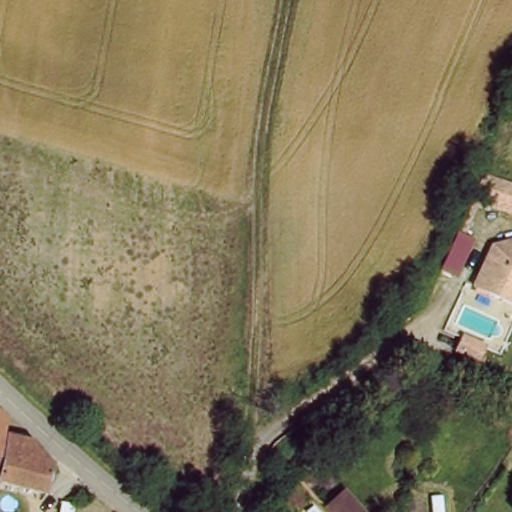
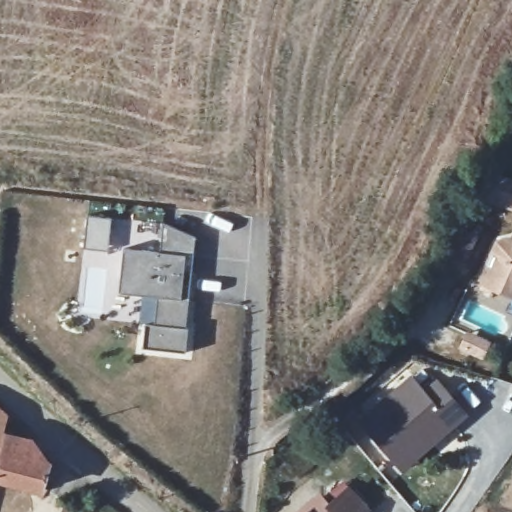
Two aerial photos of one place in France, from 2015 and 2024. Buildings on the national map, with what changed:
unchanged [(489,171),(512,179),(512,208),(476,195),(489,171)]
new [(193,239),(186,329),(188,329),(185,353),(143,349),(147,324),(156,325),(159,297),(119,294),(124,250),(160,254),(163,225),(193,239)]
unchanged [(503,301),(469,284),(490,244),(512,240),(512,306),(503,301)]
new [(412,378),(426,392),(438,380),(469,417),(403,474),(360,424),(412,378)]
unchanged [(0,432),(0,411),(4,415),(0,432)]
unchanged [(54,462),(41,498),(0,487),(0,432),(4,415),(4,416),(5,417),(3,438),(41,449),(54,462)]
unchanged [(306,480),(334,509),(353,491),(371,510),(369,512),(276,512),(306,480)]

